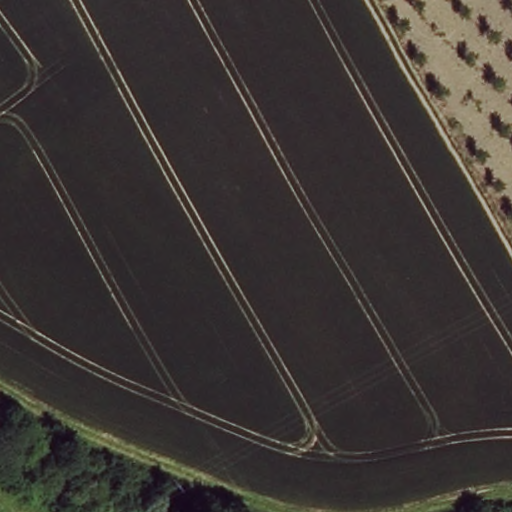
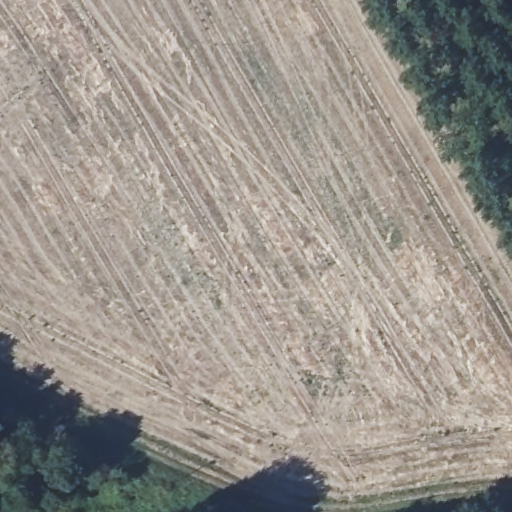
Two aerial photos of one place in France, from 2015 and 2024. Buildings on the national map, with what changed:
[]

